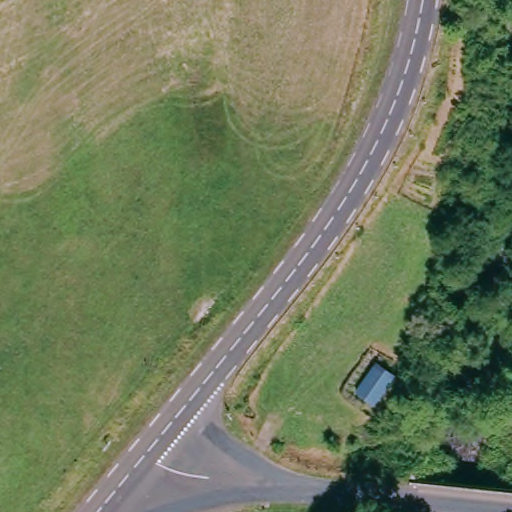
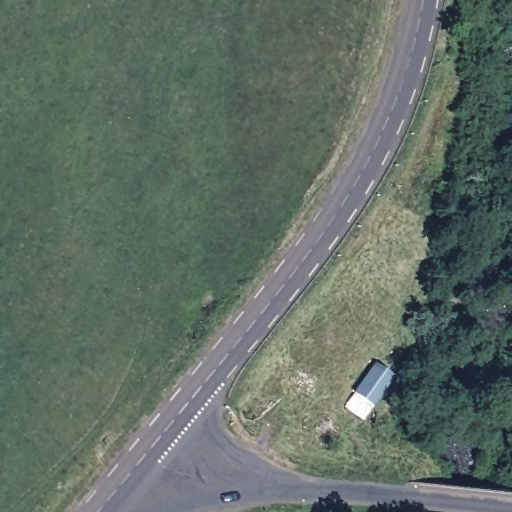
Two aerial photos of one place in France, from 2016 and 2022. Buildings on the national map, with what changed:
unchanged [(380,412),(358,399),(378,365),(402,378),(380,412)]

